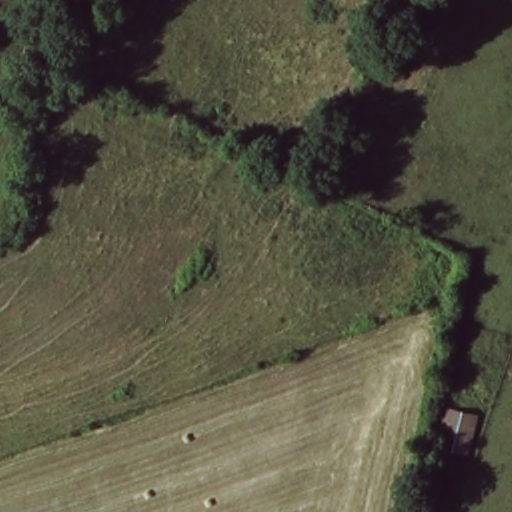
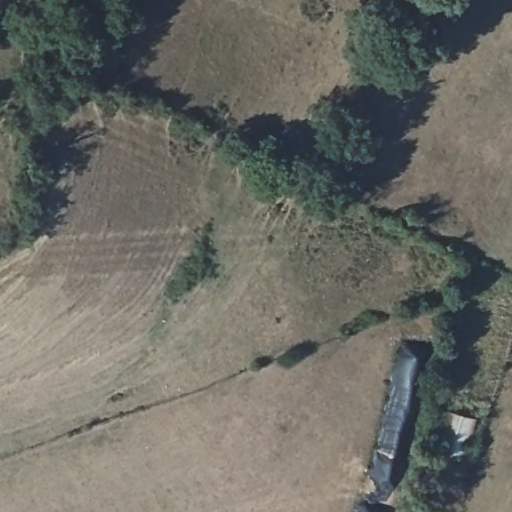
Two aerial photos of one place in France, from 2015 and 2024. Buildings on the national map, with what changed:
[]

